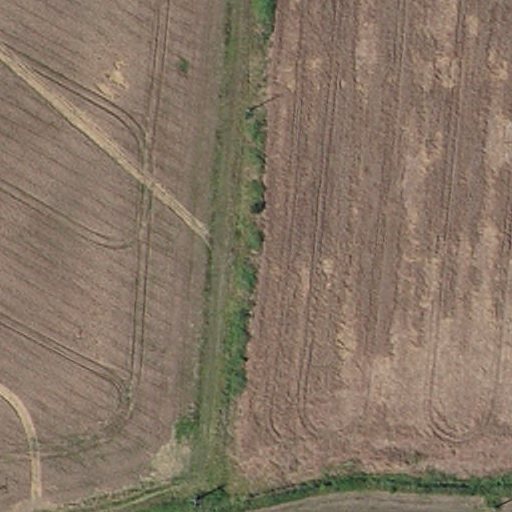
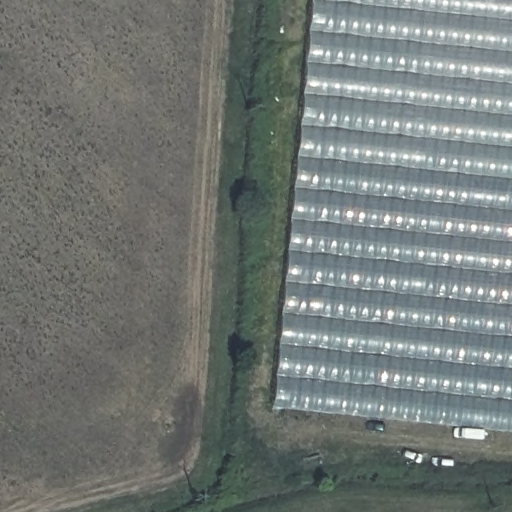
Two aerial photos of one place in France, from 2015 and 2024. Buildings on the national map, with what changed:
new [(273,405),(311,0),(512,0),(512,431),(273,405)]

